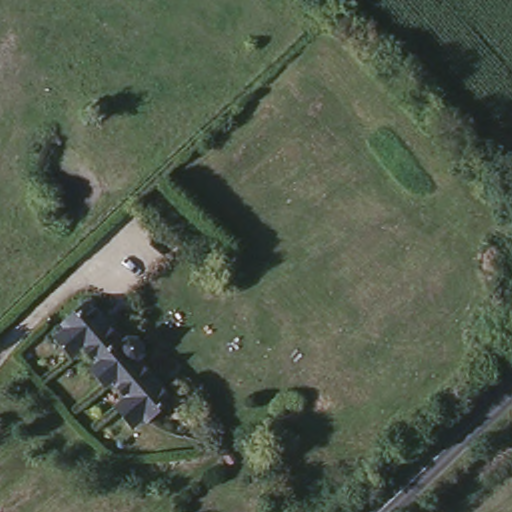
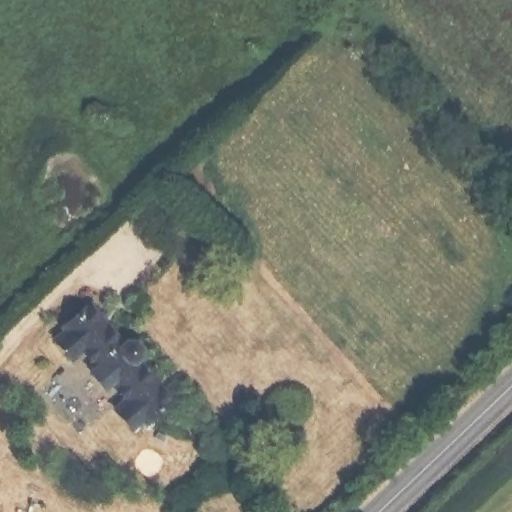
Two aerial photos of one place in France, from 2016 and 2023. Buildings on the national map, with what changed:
unchanged [(140,417),(124,397),(135,388),(120,370),(115,375),(102,359),(107,355),(92,337),(81,347),(65,327),(76,318),(73,315),(96,295),(130,336),(137,331),(145,331),(150,337),(150,346),(147,348),(163,366),(159,370),(177,391),(155,411),(151,407),(140,417)]

